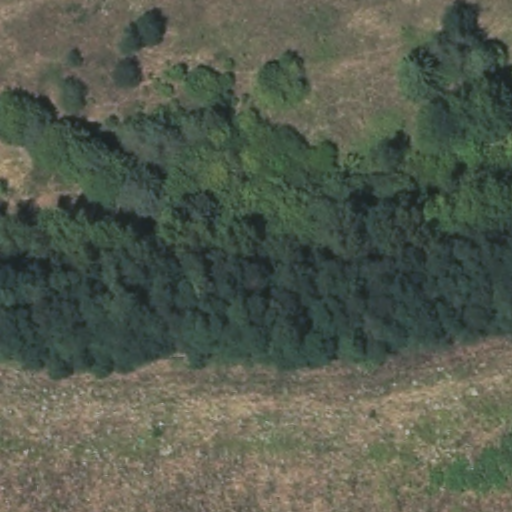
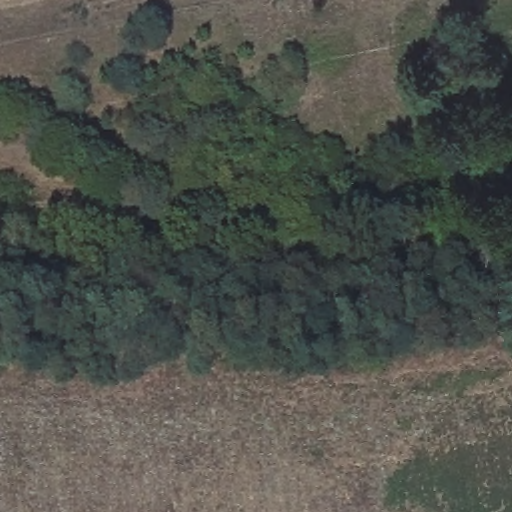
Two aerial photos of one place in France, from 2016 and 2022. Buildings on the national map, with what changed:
[]

